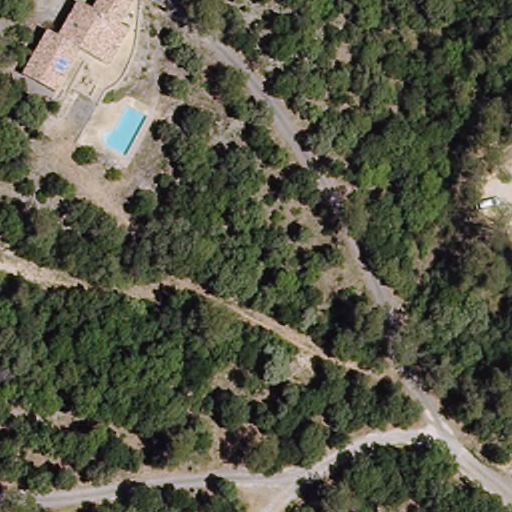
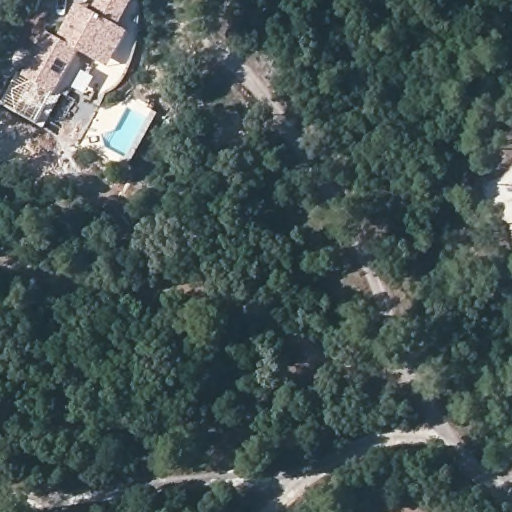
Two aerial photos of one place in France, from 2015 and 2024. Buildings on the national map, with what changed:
unchanged [(50,86),(20,63),(51,23),(61,31),(76,11),(85,0),(87,0),(91,4),(98,9),(106,0),(134,0),(135,1),(140,5),(122,28),(132,34),(117,54),(107,66),(94,58),(80,46),(50,86)]

